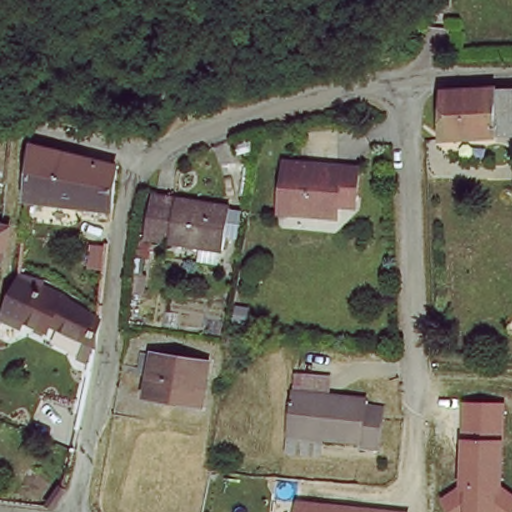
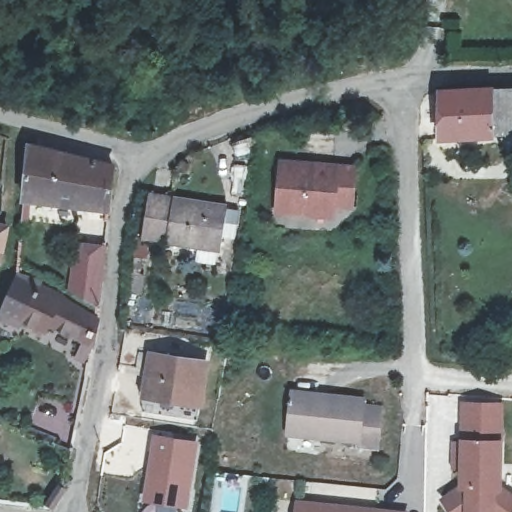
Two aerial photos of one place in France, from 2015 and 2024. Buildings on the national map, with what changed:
unchanged [(512,84),(512,132),(495,133),(494,85),(512,84)]
unchanged [(495,133),(441,136),(442,88),(494,85),(495,133)]
unchanged [(115,169),(111,211),(27,200),(32,148),(115,169)]
unchanged [(277,212),(280,162),(337,166),(353,168),(351,206),(335,205),(333,217),(315,215),(277,212)]
demolished [(492,198),(492,176),(512,176),(512,198),(492,198)]
unchanged [(145,235),(150,193),(226,203),(219,245),(145,235)]
unchanged [(0,264),(0,225),(2,226),(8,227),(0,264)]
unchanged [(79,249),(85,250),(107,253),(100,310),(72,295),(75,272),(79,249)]
unchanged [(55,319),(51,328),(5,306),(20,270),(43,281),(70,294),(103,315),(99,342),(55,319)]
unchanged [(147,396),(154,357),(208,366),(202,406),(147,396)]
unchanged [(359,437),(287,431),(291,388),(362,395),(362,402),(380,403),(377,444),(358,443),(359,437)]
unchanged [(462,404),(493,404),(498,404),(499,441),(500,487),(512,496),(512,509),(510,512),(452,512),(443,501),(462,487),(462,404)]
new [(151,433),(200,440),(190,510),(142,503),(151,433)]
unchanged [(296,499),(410,508),(410,512),(295,512),(296,499)]

